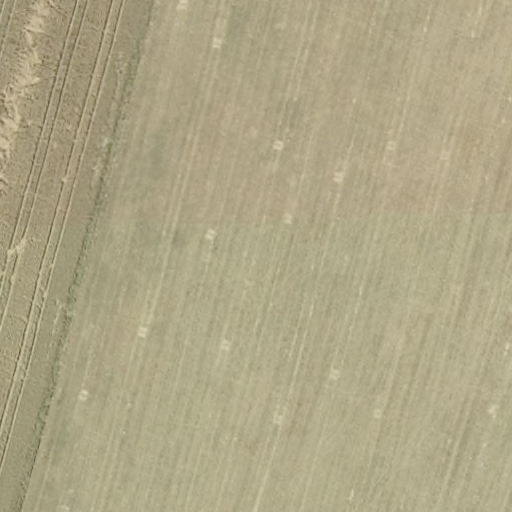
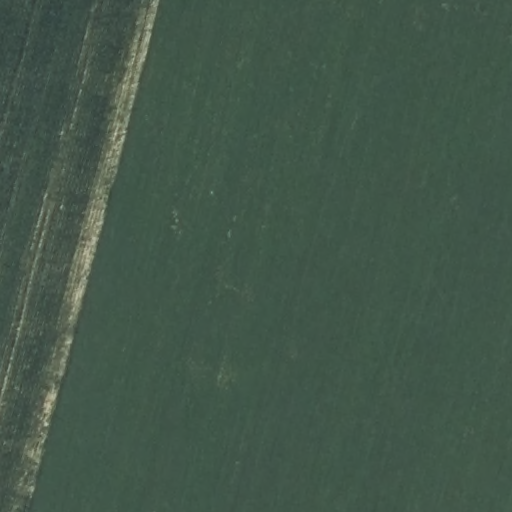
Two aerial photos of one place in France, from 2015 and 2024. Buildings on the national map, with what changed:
[]

